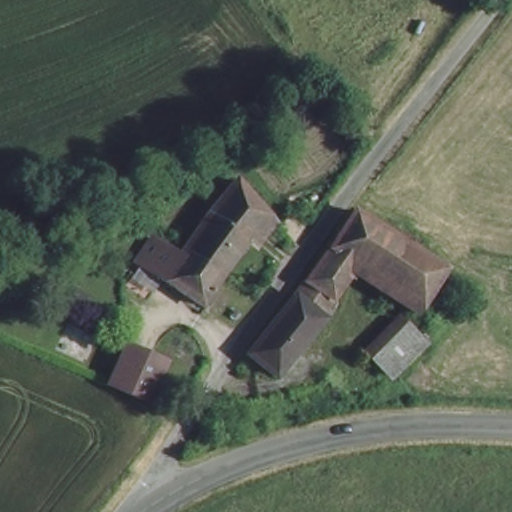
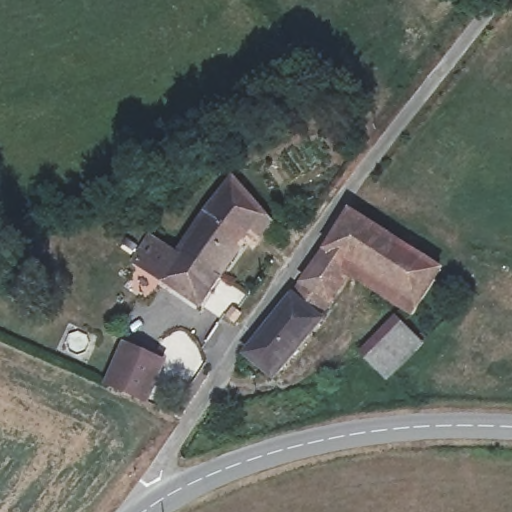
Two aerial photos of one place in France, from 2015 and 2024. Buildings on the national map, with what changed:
unchanged [(246,249),(222,282),(180,252),(224,193),(262,226),(262,245),(246,249)]
unchanged [(342,212),(434,263),(409,307),(357,279),(316,257),(342,212)]
unchanged [(202,310),(155,272),(167,254),(177,256),(180,252),(222,282),(202,310)]
unchanged [(316,257),(357,279),(321,329),(286,305),(290,302),(316,257)]
unchanged [(238,368),(286,305),(321,329),(267,393),(238,368)]
unchanged [(415,333),(395,378),(367,365),(388,320),(415,333)]
unchanged [(152,368),(140,396),(107,384),(121,355),(152,368)]

